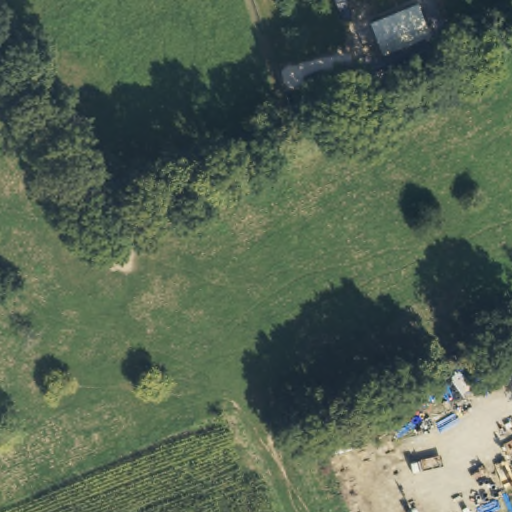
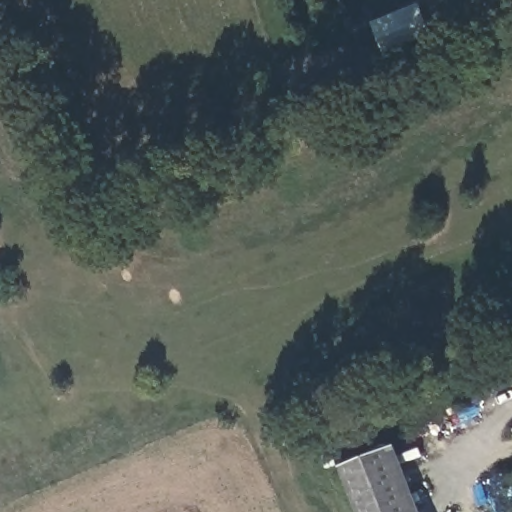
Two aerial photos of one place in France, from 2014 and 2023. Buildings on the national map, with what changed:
unchanged [(421,31),(376,49),(364,19),(409,0),(421,31)]
new [(395,445),(421,512),(356,512),(339,467),(395,445)]

